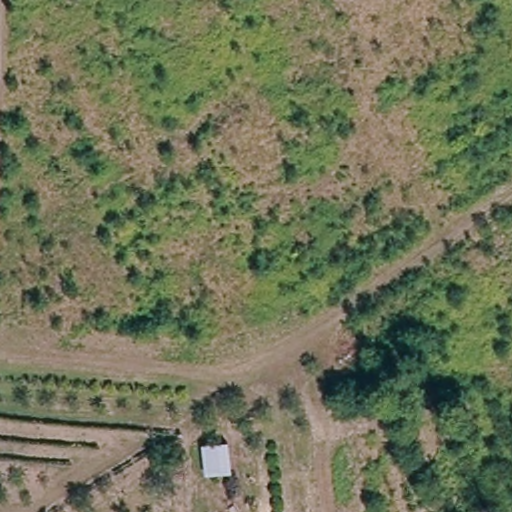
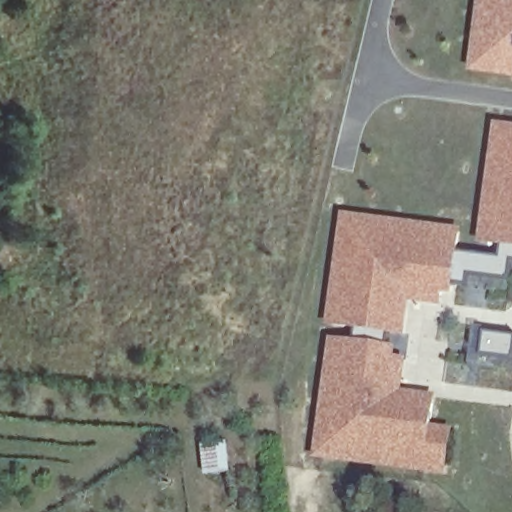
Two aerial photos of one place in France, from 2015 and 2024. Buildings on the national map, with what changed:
new [(467,70),(476,0),(512,0),(512,75),(467,70)]
new [(462,229),(459,253),(501,258),(502,247),(476,243),(494,121),(512,123),(512,260),(510,260),(506,277),(468,273),(466,282),(455,281),(454,293),(442,292),(440,304),(408,301),(403,336),(391,335),(390,344),(397,346),(396,356),(405,357),(402,389),(436,393),(432,422),(453,426),(447,475),(312,457),(329,337),(353,341),(354,330),(325,327),(340,212),(462,229)]
new [(512,332),(512,350),(511,357),(477,352),(480,327),(512,332)]

